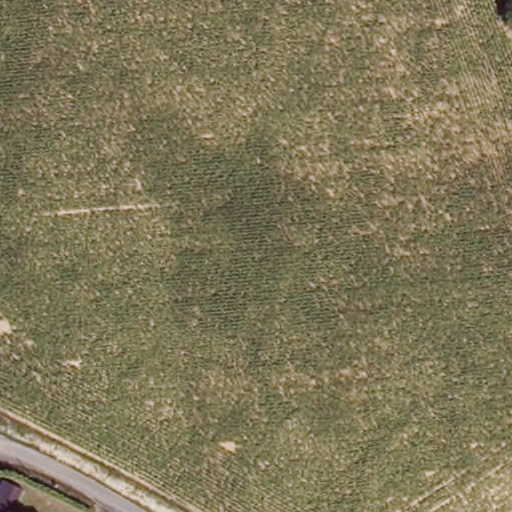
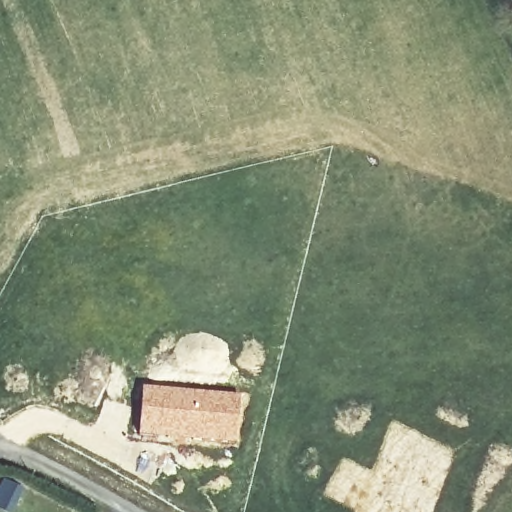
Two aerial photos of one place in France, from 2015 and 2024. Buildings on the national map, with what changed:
new [(142,387),(241,396),(237,445),(136,438),(142,387)]
unchanged [(17,512),(1,512),(0,512),(0,504),(7,485),(25,491),(17,512)]

